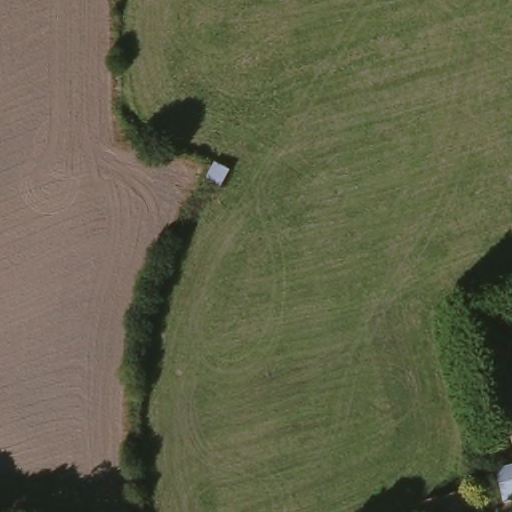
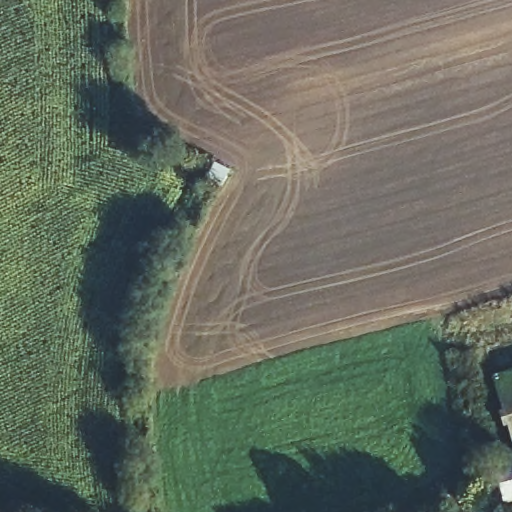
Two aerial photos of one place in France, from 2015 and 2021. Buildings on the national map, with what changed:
unchanged [(235,167),(227,185),(211,177),(218,160),(235,167)]
unchanged [(512,414),(499,372),(512,368),(512,414)]
unchanged [(495,475),(512,470),(512,504),(504,506),(495,475)]
unchanged [(470,511),(466,512),(430,512),(427,498),(465,489),(470,511)]

